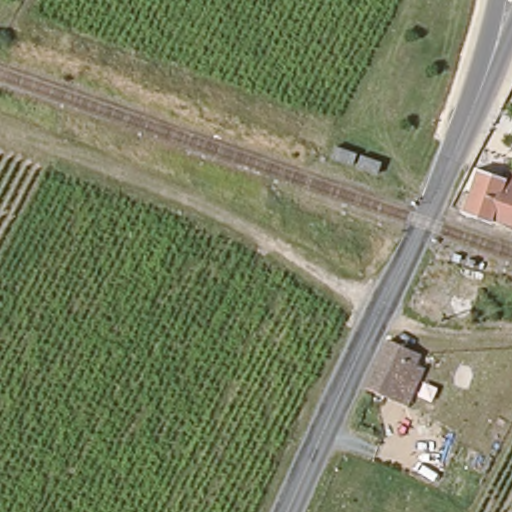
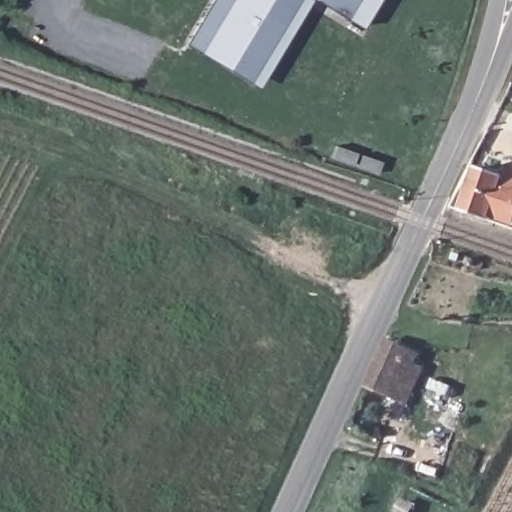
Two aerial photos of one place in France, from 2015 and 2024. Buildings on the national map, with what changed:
new [(249,81),(201,52),(186,42),(211,0),(310,0),(257,87),(249,81)]
new [(346,19),(316,0),(378,0),(362,27),(346,19)]
unchanged [(357,155),(352,167),(331,158),(337,147),(357,155)]
unchanged [(376,177),(357,170),(362,157),(382,165),(376,177)]
unchanged [(482,159),(507,169),(510,163),(512,164),(512,226),(510,231),(487,221),(462,211),(482,159)]
unchanged [(397,344),(423,356),(417,368),(427,373),(409,406),(376,390),(397,344)]

